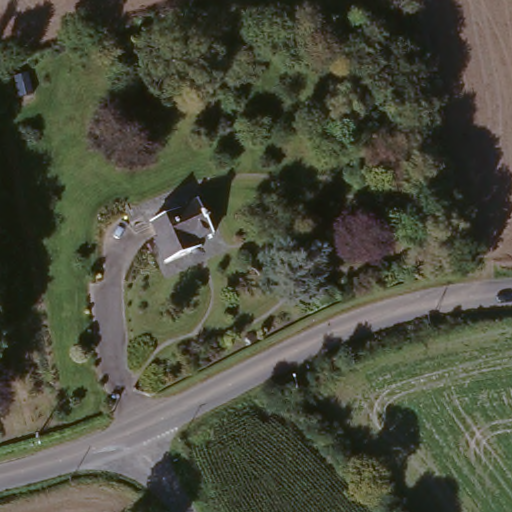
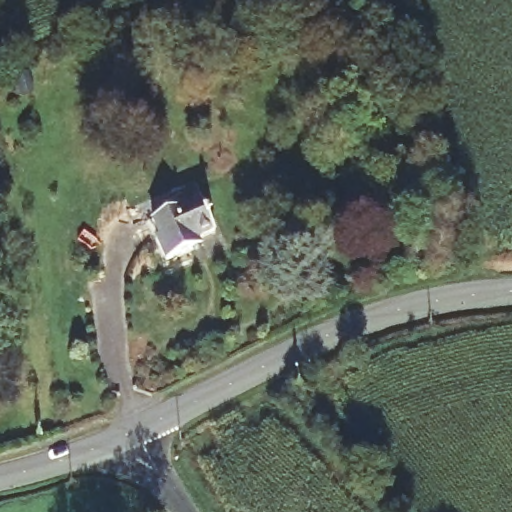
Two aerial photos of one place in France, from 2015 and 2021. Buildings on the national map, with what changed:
unchanged [(206,205),(223,235),(209,241),(213,247),(174,265),(161,242),(166,238),(161,226),(206,205)]

